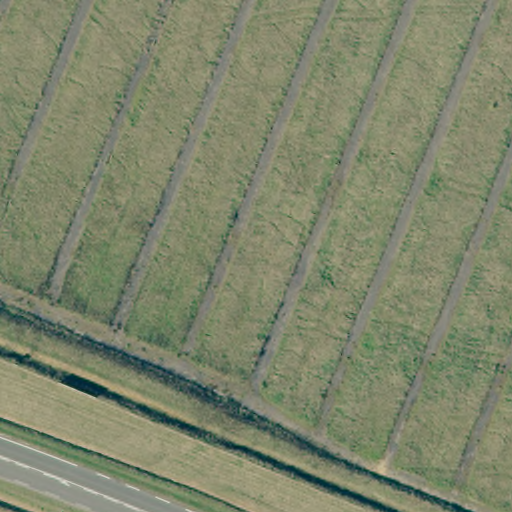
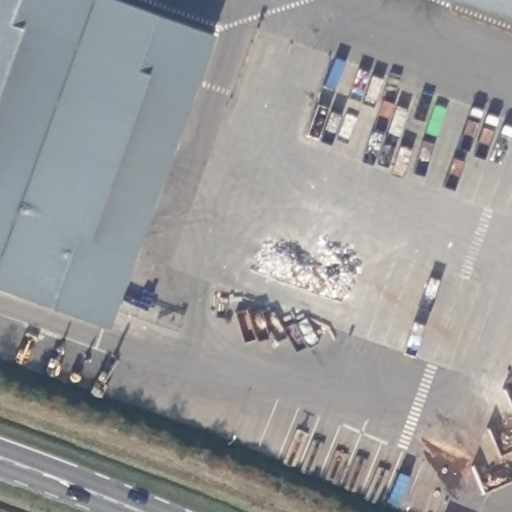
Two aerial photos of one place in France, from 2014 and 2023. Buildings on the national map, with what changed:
new [(105,325),(0,288),(0,0),(117,0),(211,34),(105,325)]
new [(442,0),(450,0),(449,3),(442,0)]
new [(512,0),(512,20),(455,0),(512,0)]

